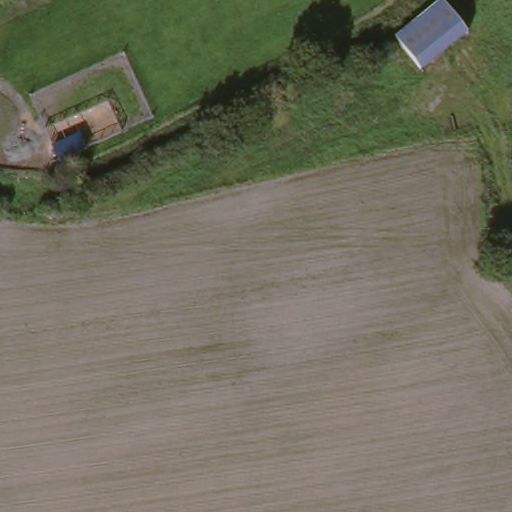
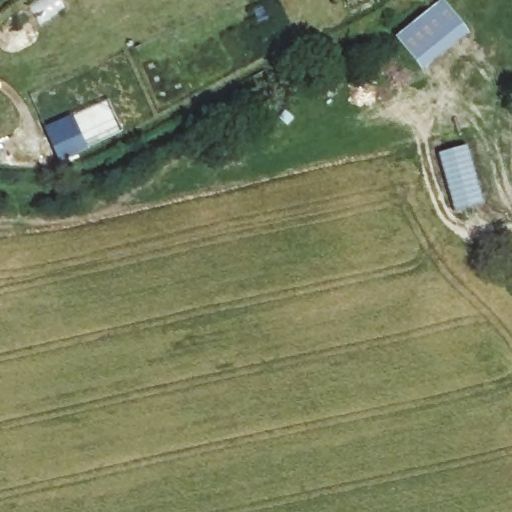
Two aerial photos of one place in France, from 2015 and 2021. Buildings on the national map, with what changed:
unchanged [(437,0),(449,0),(469,24),(422,63),(397,35),(437,0)]
new [(467,145),(482,204),(452,212),(438,154),(467,145)]

